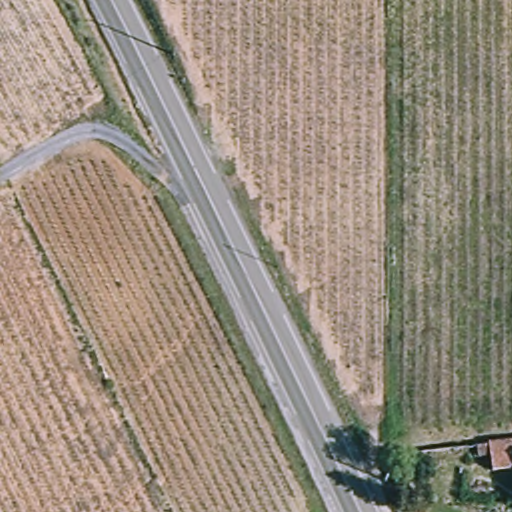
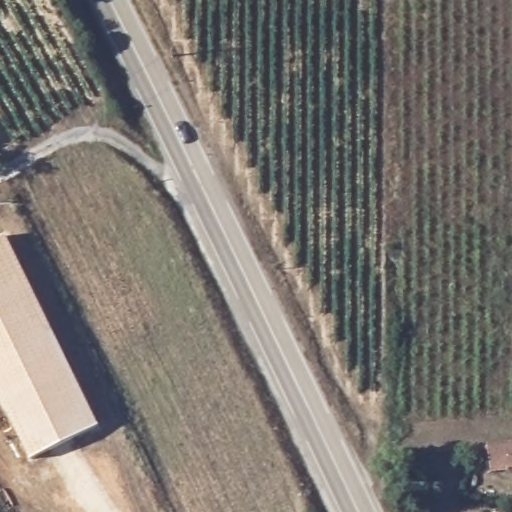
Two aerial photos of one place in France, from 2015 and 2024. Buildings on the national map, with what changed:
new [(28,458),(0,401),(0,238),(5,236),(97,424),(28,458)]
unchanged [(498,462),(498,446),(512,447),(512,462),(498,462)]

